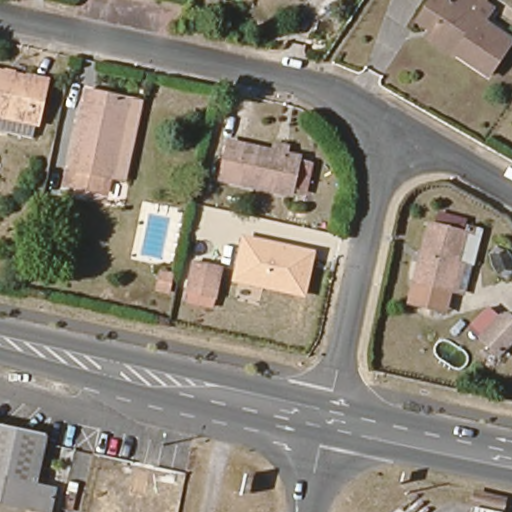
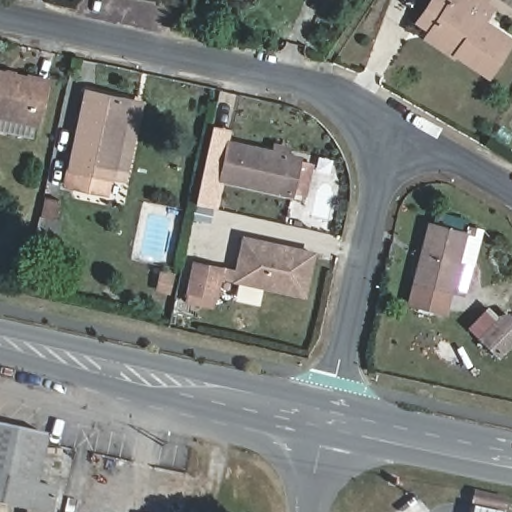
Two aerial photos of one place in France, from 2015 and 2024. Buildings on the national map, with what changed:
unchanged [(484,8),(476,21),(512,49),(512,50),(491,79),(461,63),(465,51),(430,27),(414,16),(426,0),(470,0),(484,8)]
unchanged [(39,131),(0,122),(0,78),(49,88),(39,131)]
unchanged [(86,91),(129,102),(116,159),(110,184),(62,174),(69,150),(86,91)]
unchanged [(222,181),(231,141),(300,158),(292,194),(222,181)]
unchanged [(429,214),(483,226),(465,291),(451,287),(445,314),(407,303),(429,214)]
unchanged [(305,297),(232,281),(242,235),(317,250),(305,297)]
unchanged [(221,268),(223,268),(218,301),(187,295),(192,263),(221,268)]
unchanged [(505,311),(512,319),(512,344),(498,355),(479,335),(505,311)]
unchanged [(42,479),(61,484),(55,512),(39,512),(0,505),(0,423),(51,432),(42,479)]
unchanged [(500,510),(500,512),(470,512),(472,504),(500,510)]

